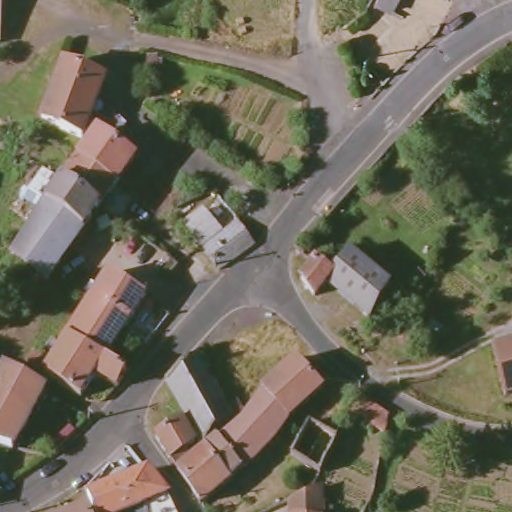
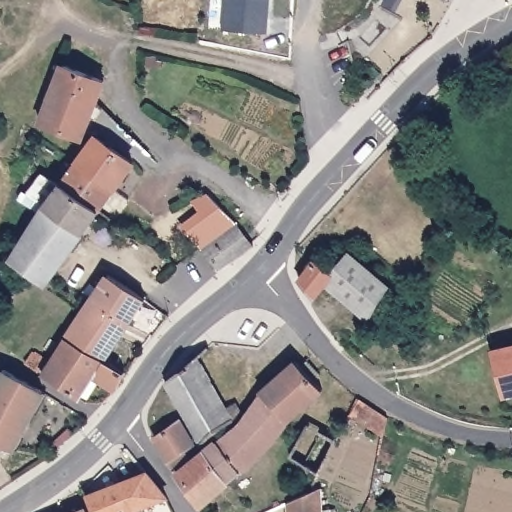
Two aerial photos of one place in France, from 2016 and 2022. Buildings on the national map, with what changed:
new [(223,0),(268,0),(265,36),(220,32),(223,0)]
unchanged [(395,16),(380,9),(386,0),(404,0),(395,16)]
unchanged [(105,77),(83,134),(41,119),(62,62),(85,70),(105,77)]
unchanged [(80,157),(97,131),(135,157),(116,182),(80,157)]
unchanged [(80,157),(116,182),(99,205),(64,179),(80,157)]
unchanged [(64,179),(99,205),(82,228),(48,202),(28,188),(44,165),(64,179)]
unchanged [(82,228),(43,281),(22,266),(12,259),(10,258),(12,254),(15,249),(48,202),(82,228)]
unchanged [(222,272),(203,248),(202,249),(186,233),(207,217),(222,206),(236,223),(255,247),(222,272)]
unchanged [(326,267),(344,247),(363,263),(384,281),(362,316),(320,280),(308,292),(293,275),(309,256),(326,267)]
unchanged [(107,346),(116,353),(111,361),(63,334),(78,310),(105,270),(142,295),(107,346)]
unchanged [(117,379),(113,386),(91,373),(76,396),(40,373),(63,334),(111,361),(121,367),(128,371),(120,381),(117,379)]
unchanged [(495,394),(484,348),(512,342),(512,391),(495,394)]
unchanged [(29,347),(43,355),(34,370),(20,361),(29,347)]
unchanged [(221,403),(230,397),(236,407),(195,441),(160,380),(165,375),(193,351),(221,403)]
unchanged [(310,374),(317,384),(290,412),(285,416),(257,384),(258,382),(290,355),(296,361),(302,356),(314,370),(310,374)]
unchanged [(0,446),(0,376),(5,366),(45,389),(12,448),(0,446)]
unchanged [(269,436),(253,452),(223,478),(198,447),(233,418),(257,384),(285,416),(269,436)]
unchanged [(190,441),(180,449),(183,454),(168,465),(148,435),(175,415),(190,441)]
unchanged [(223,478),(195,502),(171,469),(195,450),(198,447),(223,478)]
unchanged [(175,512),(139,512),(136,505),(119,512),(96,512),(90,495),(145,468),(166,493),(175,512)]
unchanged [(313,512),(283,512),(282,501),(302,492),(312,487),(313,512)]
unchanged [(71,512),(87,504),(90,512),(71,512)]
unchanged [(139,512),(119,512),(136,505),(139,512)]

